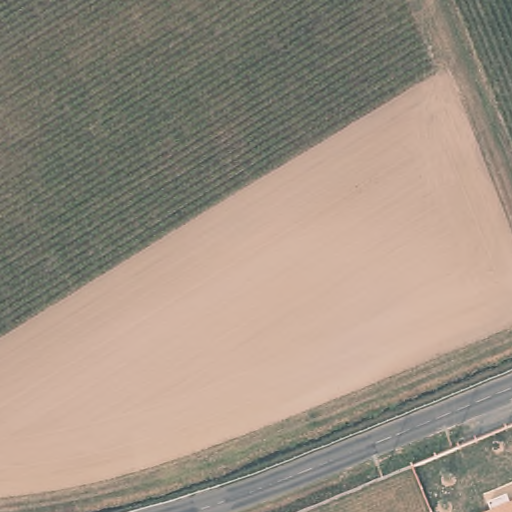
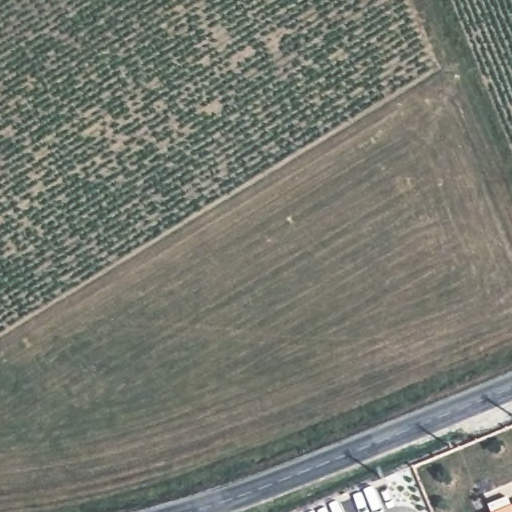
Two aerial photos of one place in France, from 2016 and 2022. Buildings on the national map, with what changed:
unchanged [(512,509),(512,512),(503,512),(512,509)]

